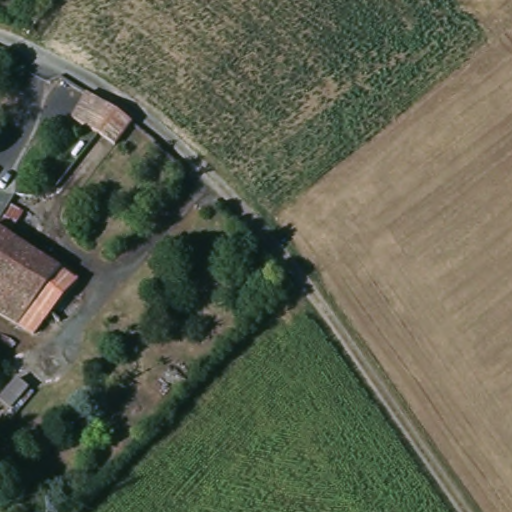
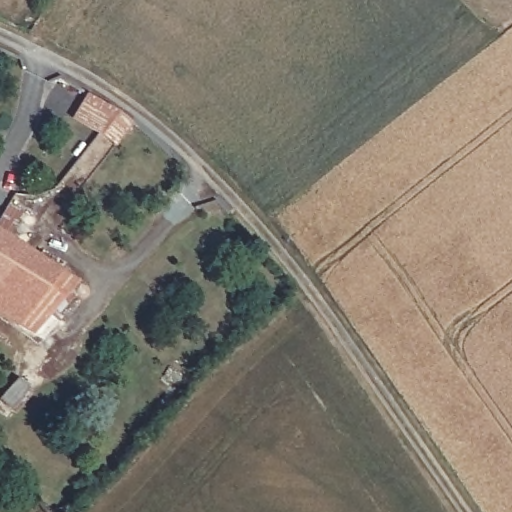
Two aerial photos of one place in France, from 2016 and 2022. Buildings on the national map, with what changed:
unchanged [(116,145),(101,135),(99,132),(74,117),(90,92),(119,110),(134,122),(116,145)]
unchanged [(31,337),(0,319),(0,230),(56,268),(74,280),(47,316),(31,337)]

